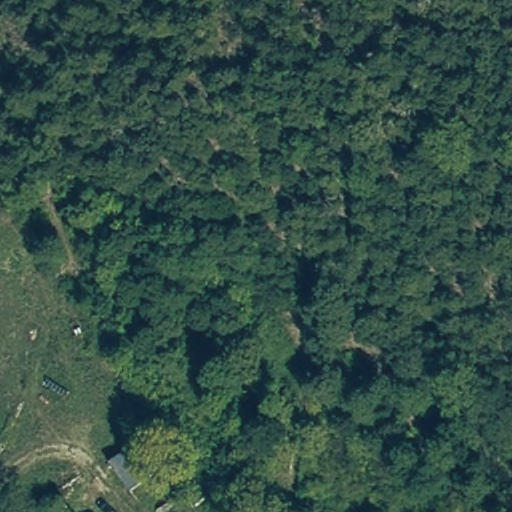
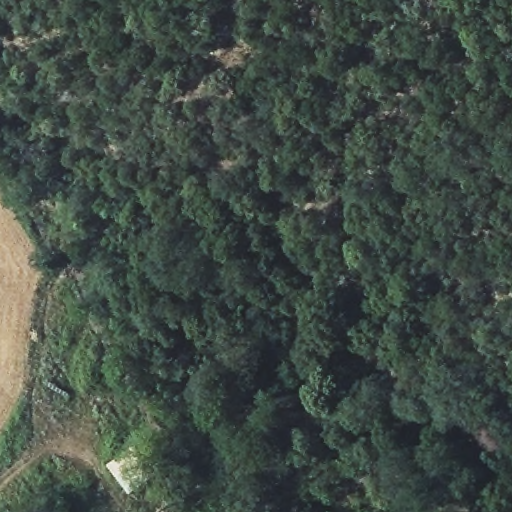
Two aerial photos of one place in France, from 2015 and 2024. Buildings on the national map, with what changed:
unchanged [(137,445),(150,465),(125,482),(110,463),(137,445)]

